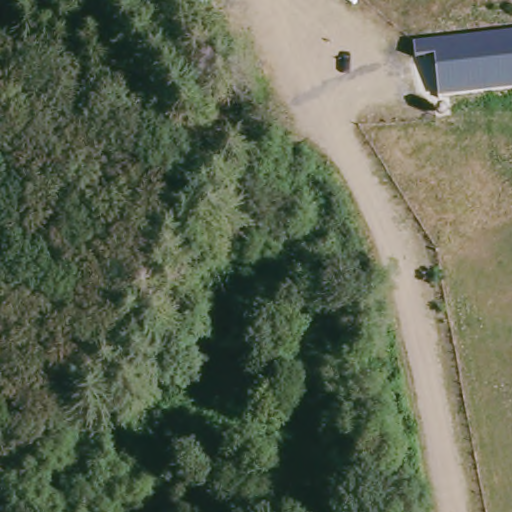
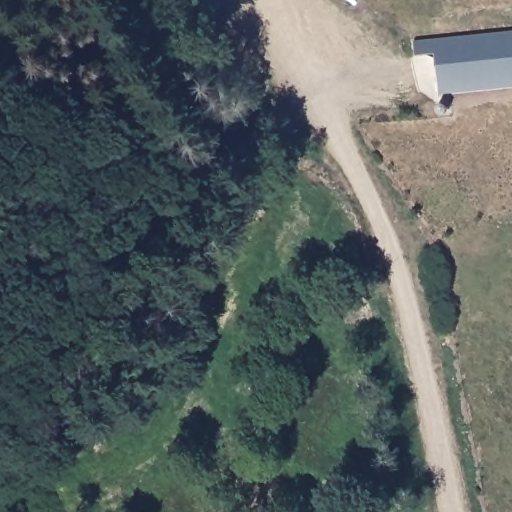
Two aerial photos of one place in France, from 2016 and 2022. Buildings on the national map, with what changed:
unchanged [(512,31),(512,86),(438,92),(434,55),(415,56),(414,41),(512,31)]

